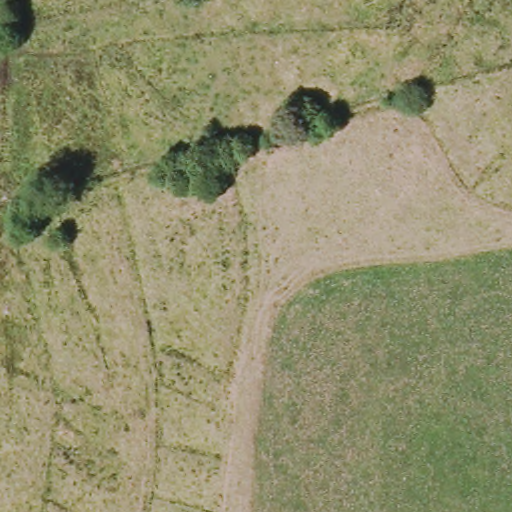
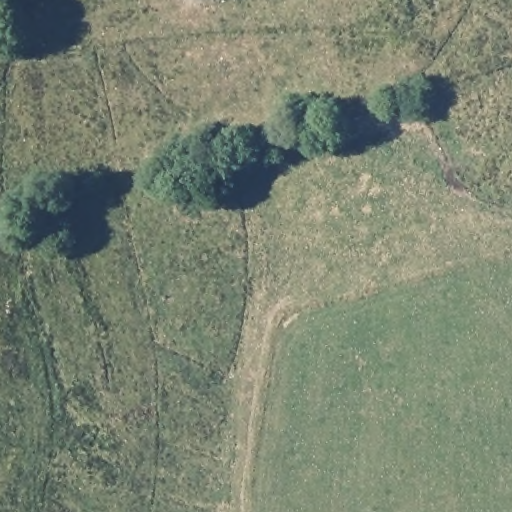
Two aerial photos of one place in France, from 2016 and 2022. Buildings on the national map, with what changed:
[]

